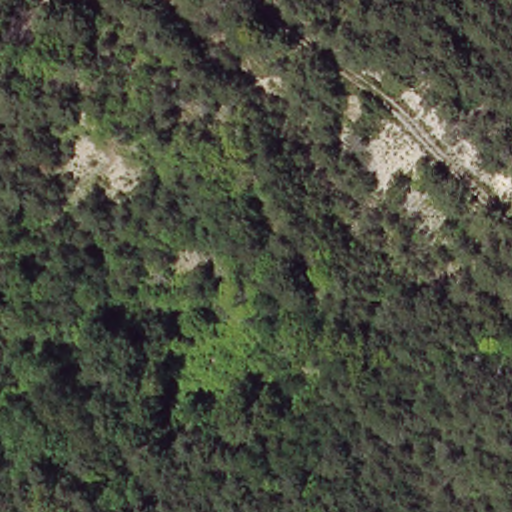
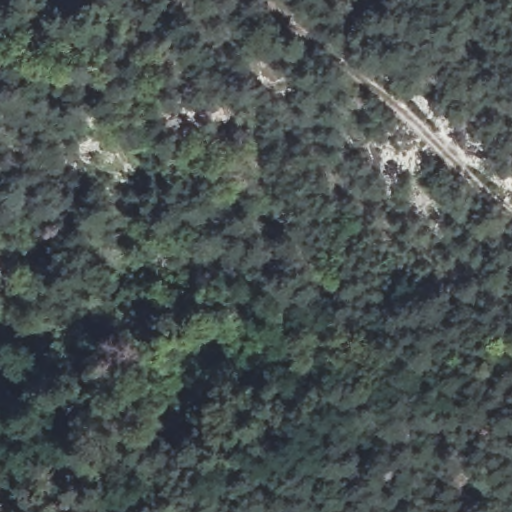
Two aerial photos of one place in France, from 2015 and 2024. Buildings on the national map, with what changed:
[]

